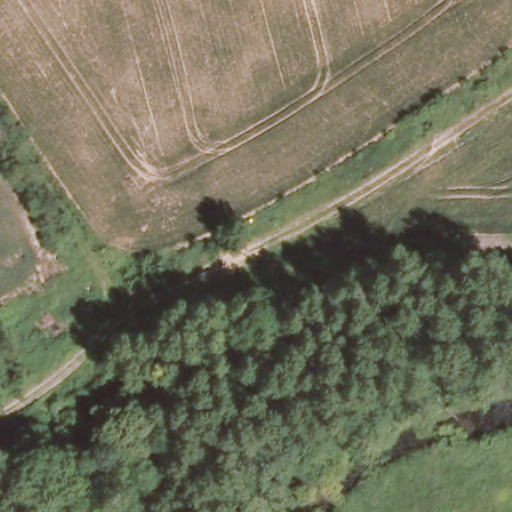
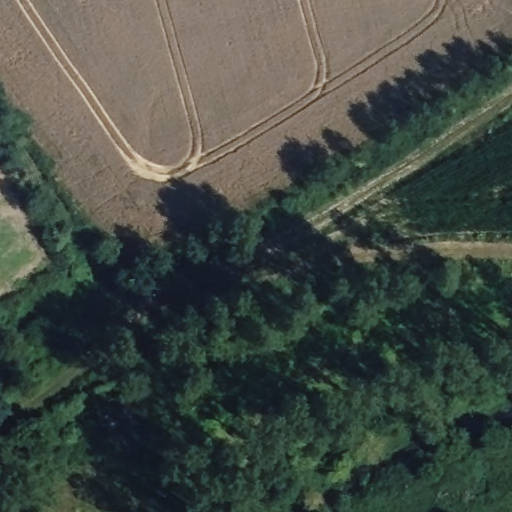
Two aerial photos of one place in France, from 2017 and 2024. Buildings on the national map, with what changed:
unchanged [(109,377),(122,407),(119,408),(73,426),(58,395),(109,377)]

